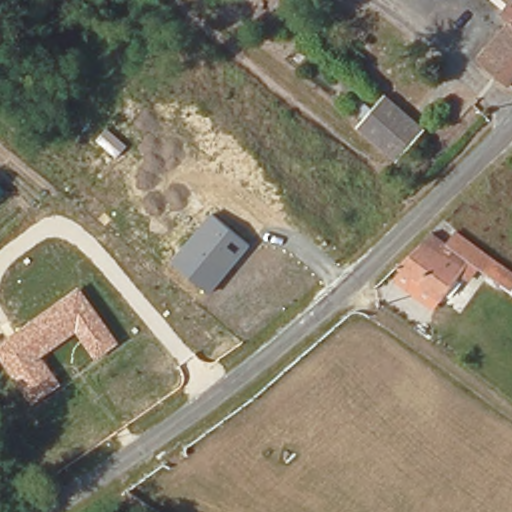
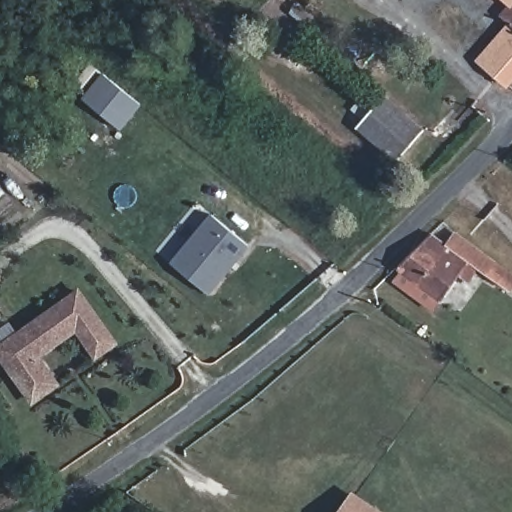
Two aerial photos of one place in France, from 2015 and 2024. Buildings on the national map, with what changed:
unchanged [(496,19),(504,7),(495,0),(512,0),(512,82),(505,90),(474,65),(503,26),(496,19)]
new [(122,129),(82,98),(102,73),(141,104),(122,129)]
unchanged [(397,170),(380,157),(351,134),(380,101),(421,136),(415,145),(397,170)]
unchanged [(172,262),(212,212),(251,245),(210,293),(172,262)]
unchanged [(445,248),(452,234),(512,279),(512,297),(466,268),(436,305),(393,272),(427,237),(445,248)]
unchanged [(77,331),(42,355),(61,384),(32,403),(0,358),(0,343),(79,286),(119,343),(95,358),(77,331)]
new [(338,512),(352,491),(381,512),(338,512)]

